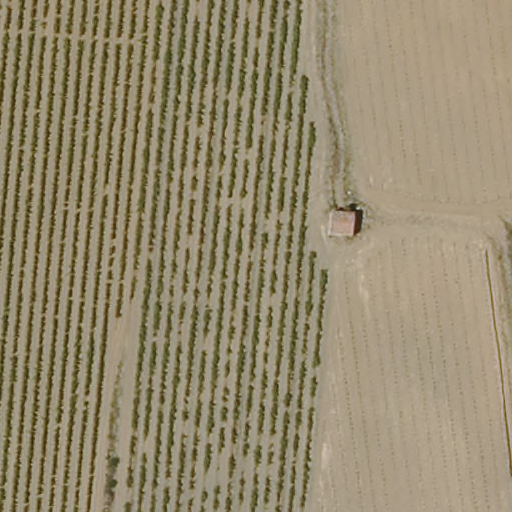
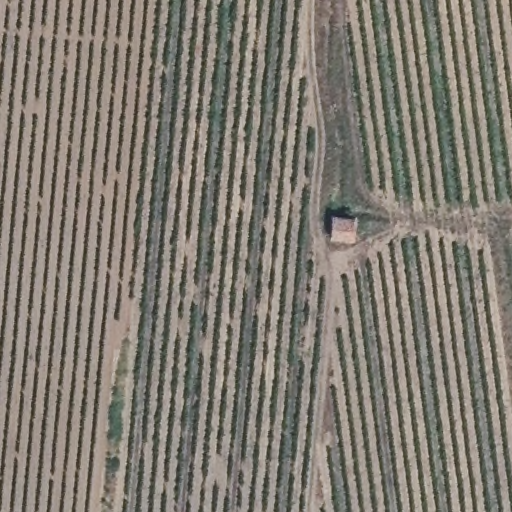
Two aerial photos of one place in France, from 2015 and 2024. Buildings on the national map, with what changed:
unchanged [(334,234),(338,214),(354,215),(351,235),(334,234)]

